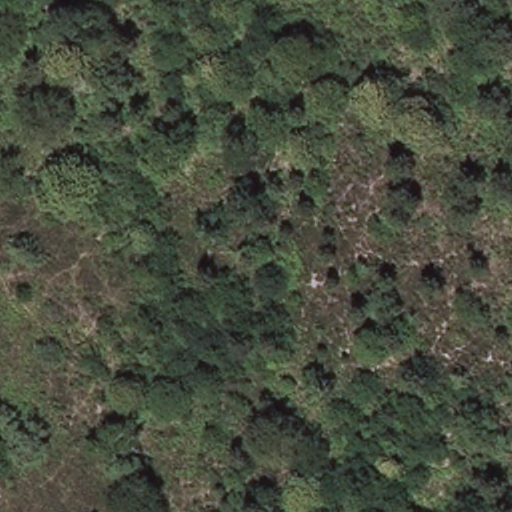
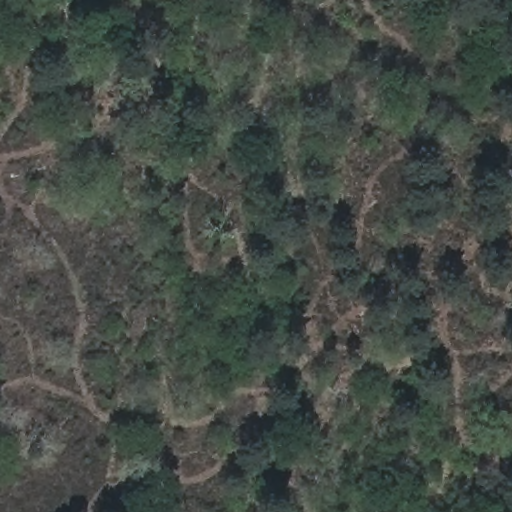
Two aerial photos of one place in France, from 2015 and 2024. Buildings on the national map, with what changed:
unchanged [(57,0),(66,0),(78,33),(56,42),(44,4),(57,0)]

